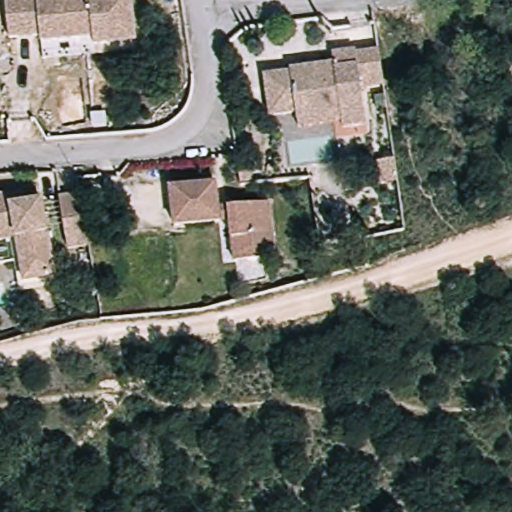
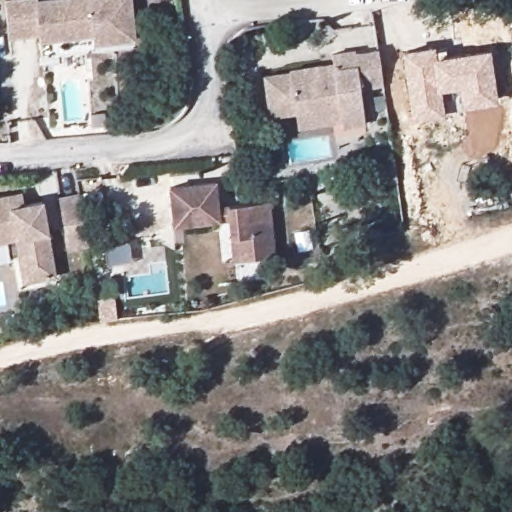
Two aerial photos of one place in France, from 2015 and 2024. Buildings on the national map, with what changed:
unchanged [(96,41),(95,33),(42,39),(42,32),(11,35),(7,0),(133,0),(137,37),(96,41)]
new [(489,48),(497,101),(463,109),(459,87),(438,90),(443,116),(412,120),(402,51),(435,46),(435,58),(489,48)]
unchanged [(274,116),(269,76),(294,73),(295,70),(338,64),(336,54),(359,50),(359,54),(383,50),(388,85),(365,89),(370,124),(346,128),(345,121),(302,128),(300,113),(274,116)]
unchanged [(245,182),(242,168),(253,166),(255,181),(245,182)]
unchanged [(220,204),(270,199),(276,257),(233,264),(228,223),(173,228),(170,184),(218,180),(220,204)]
unchanged [(0,240),(0,196),(14,193),(27,191),(29,202),(47,199),(48,205),(59,274),(35,279),(28,280),(20,237),(0,240)]
unchanged [(68,248),(60,203),(59,197),(79,194),(80,201),(88,244),(68,248)]

